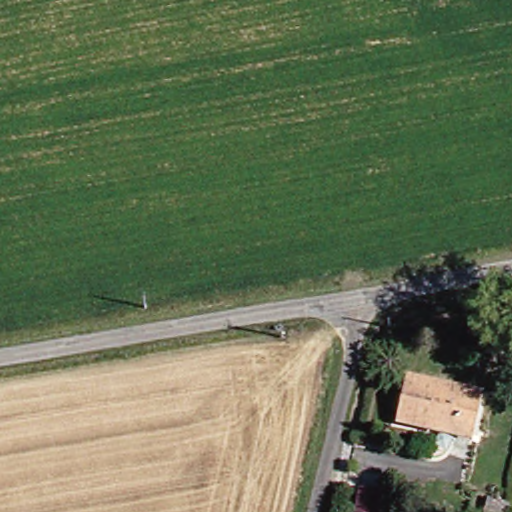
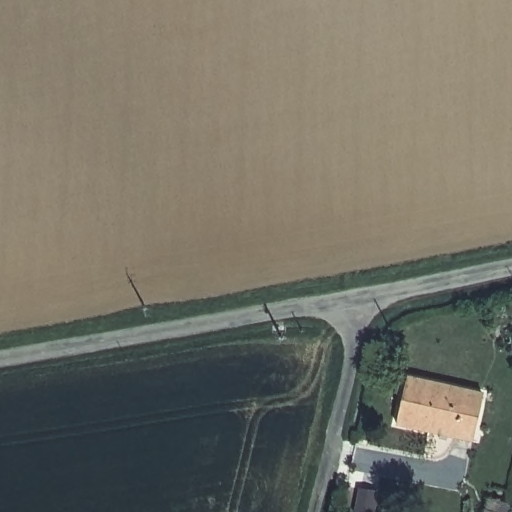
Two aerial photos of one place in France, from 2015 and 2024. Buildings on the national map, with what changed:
unchanged [(435,424),(404,415),(417,371),(489,390),(479,428),(477,435),(435,424)]

